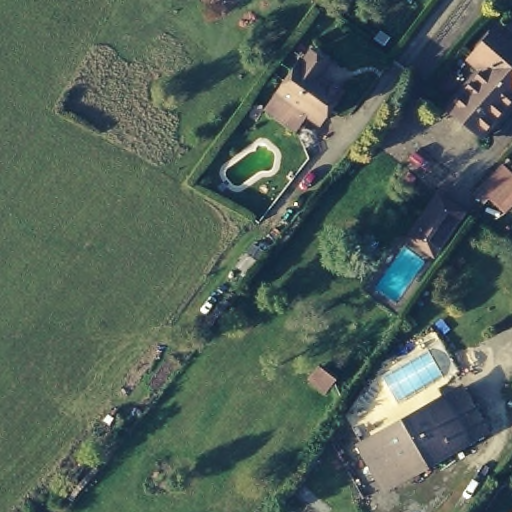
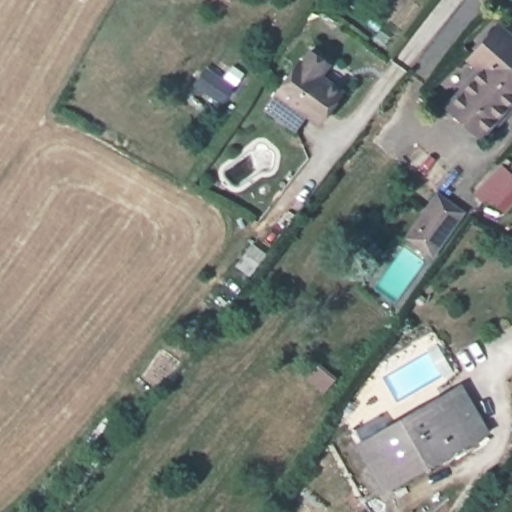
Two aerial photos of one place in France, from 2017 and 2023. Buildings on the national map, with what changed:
unchanged [(483,127),(476,135),(445,108),(478,71),(472,66),(498,36),(512,47),(512,94),(511,95),(512,96),(512,107),(488,133),(483,127)]
unchanged [(297,68),(301,71),(306,62),(310,58),(327,70),(325,74),(319,82),(322,84),(340,97),(319,131),(299,116),(277,100),(297,68)]
unchanged [(512,176),(512,204),(502,214),(485,197),(481,202),(473,194),(500,163),(512,176)]
unchanged [(467,215),(430,262),(401,241),(437,192),(467,215)]
unchanged [(307,378),(320,363),(337,377),(323,394),(307,378)]
unchanged [(433,402),(453,391),(475,431),(458,442),(433,402)]
unchanged [(376,488),(352,445),(432,400),(433,402),(458,442),(376,488)]

